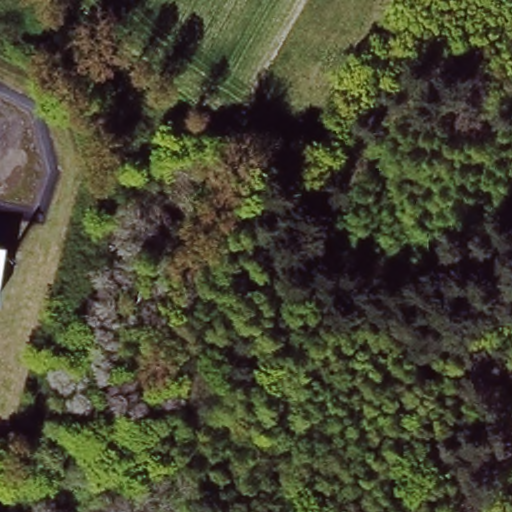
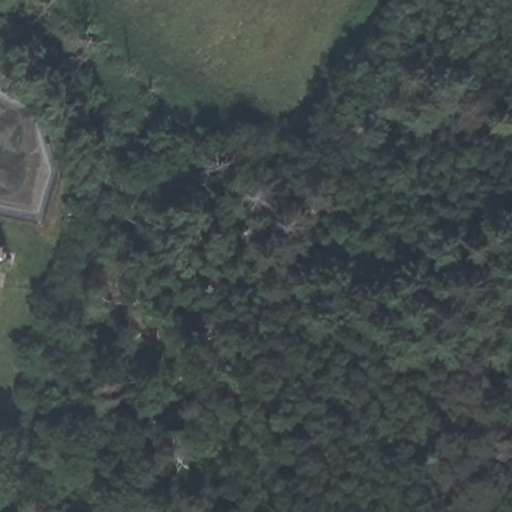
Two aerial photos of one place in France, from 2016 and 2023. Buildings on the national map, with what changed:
unchanged [(4,246),(0,270),(0,245),(4,246)]

